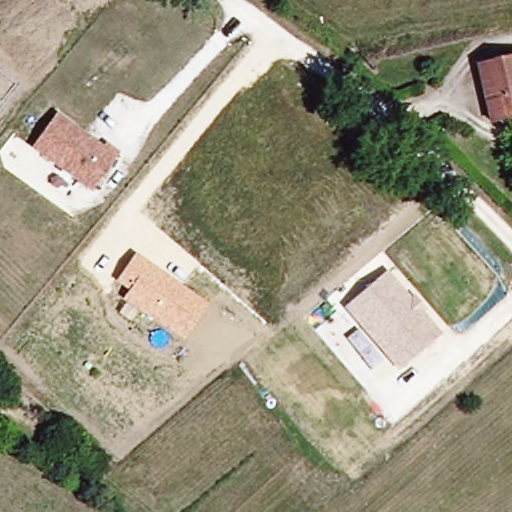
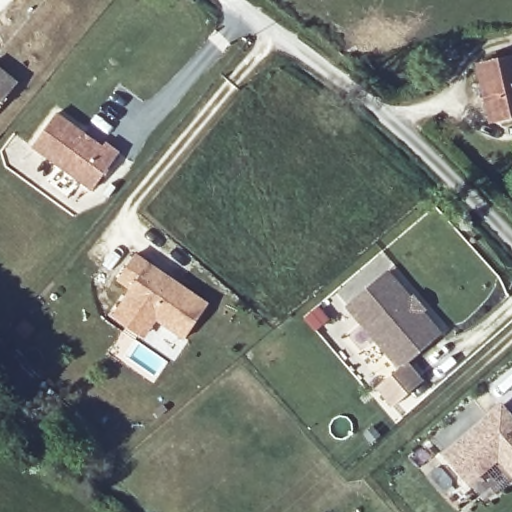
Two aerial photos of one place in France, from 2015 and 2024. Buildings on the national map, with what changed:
unchanged [(487,122),(472,60),(512,51),(512,116),(487,122)]
new [(0,105),(0,68),(19,81),(0,105)]
unchanged [(31,147),(57,113),(100,144),(104,139),(121,150),(92,190),(31,147)]
unchanged [(209,303),(184,340),(124,300),(131,290),(117,281),(136,254),(209,303)]
unchanged [(412,295),(416,292),(428,308),(425,311),(443,333),(399,370),(345,305),(388,268),(412,295)]
new [(512,413),(512,476),(498,461),(469,487),(442,456),(502,402),(512,413)]

